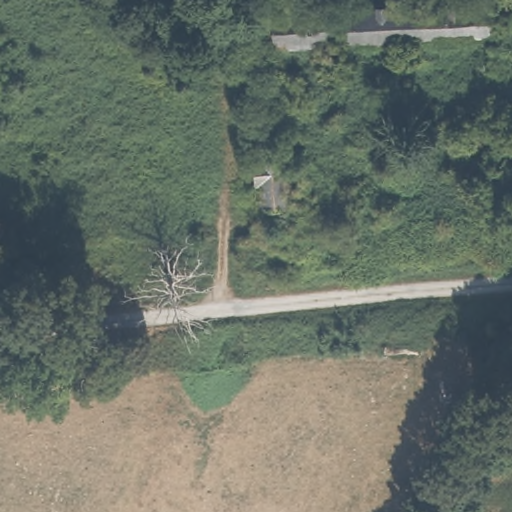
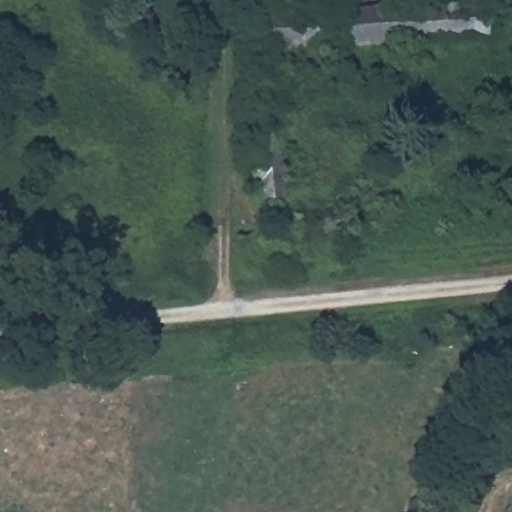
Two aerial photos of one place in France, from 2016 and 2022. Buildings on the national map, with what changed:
unchanged [(497,4),(497,0),(512,0),(512,4),(497,6),(497,4)]
unchanged [(277,51),(277,67),(248,68),(246,16),(265,15),(267,17),(292,14),(487,5),(488,42),(277,51)]
unchanged [(512,120),(511,115),(512,112),(512,120)]
unchanged [(263,213),(262,189),(256,189),(255,162),(259,159),(257,125),(287,123),(293,211),(263,213)]

